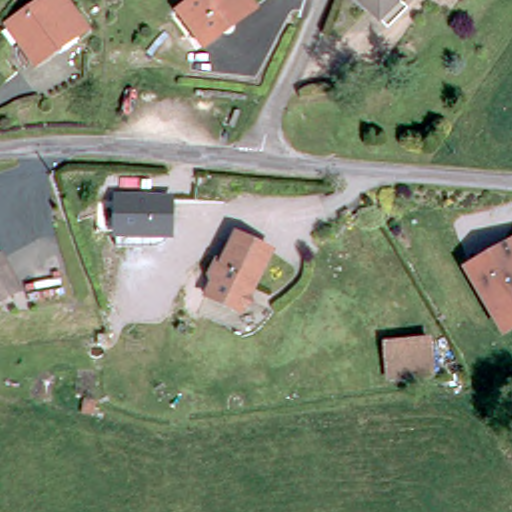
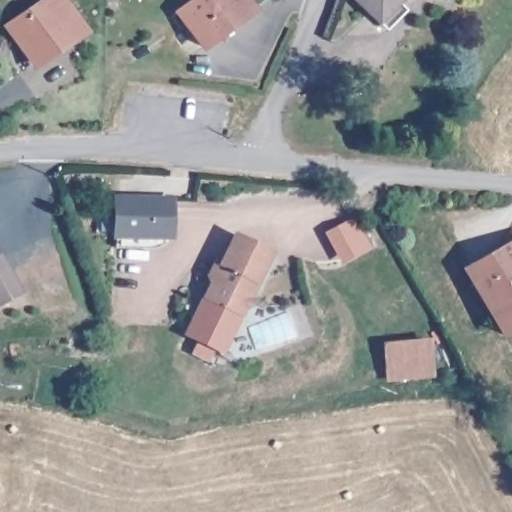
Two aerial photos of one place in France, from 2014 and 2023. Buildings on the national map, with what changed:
unchanged [(34,61),(7,25),(39,0),(63,0),(80,24),(34,61)]
unchanged [(203,47),(177,15),(194,0),(244,0),(247,5),(203,47)]
unchanged [(351,0),(396,0),(371,22),(351,0)]
unchanged [(172,196),(172,240),(112,238),(113,194),(172,196)]
new [(358,215),(375,247),(340,265),(323,234),(358,215)]
unchanged [(227,311),(204,300),(234,231),(268,249),(247,298),(227,311)]
unchanged [(512,235),(512,331),(510,332),(465,273),(512,235)]
unchanged [(0,300),(0,252),(4,250),(23,286),(0,300)]
new [(253,306),(245,311),(223,353),(187,335),(204,300),(227,311),(247,298),(253,306)]
unchanged [(384,341),(433,336),(436,375),(387,380),(384,341)]

